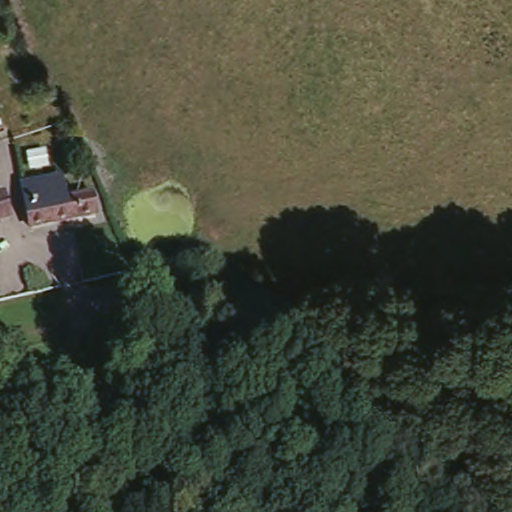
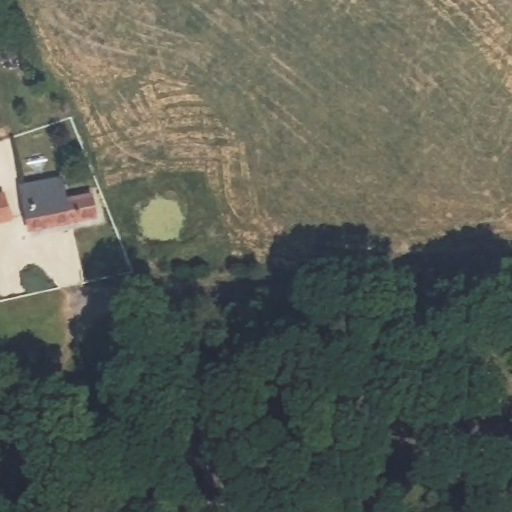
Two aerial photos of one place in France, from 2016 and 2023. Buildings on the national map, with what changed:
unchanged [(28,216),(20,173),(64,167),(69,191),(92,188),(96,206),(99,225),(59,232),(59,231),(31,235),(28,216)]

